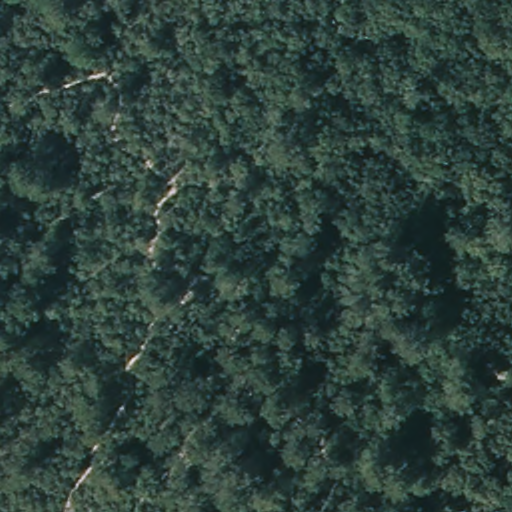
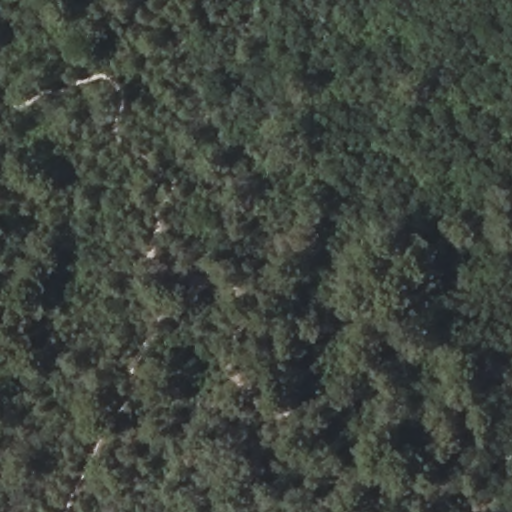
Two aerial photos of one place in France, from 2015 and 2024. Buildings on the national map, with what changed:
[]

